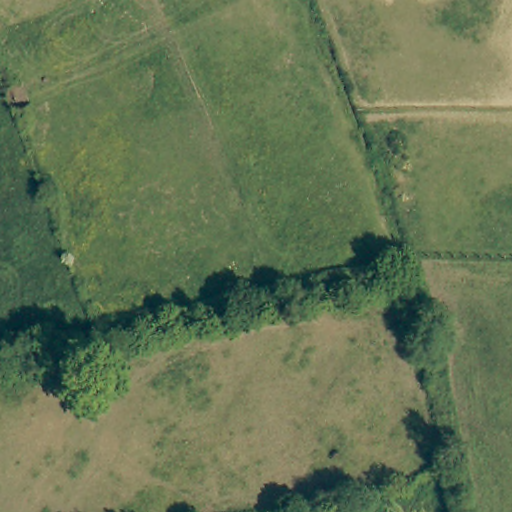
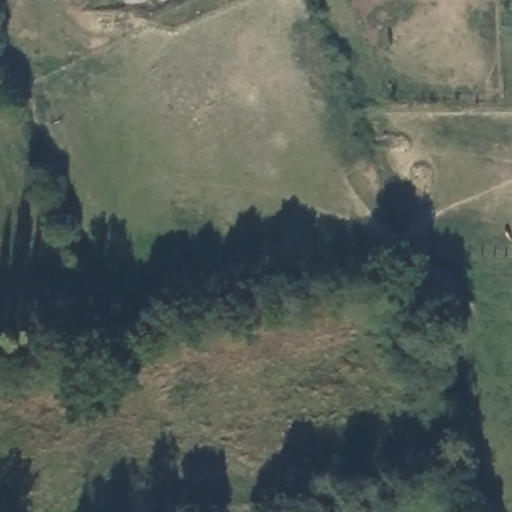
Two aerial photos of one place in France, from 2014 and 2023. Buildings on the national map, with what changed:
[]

